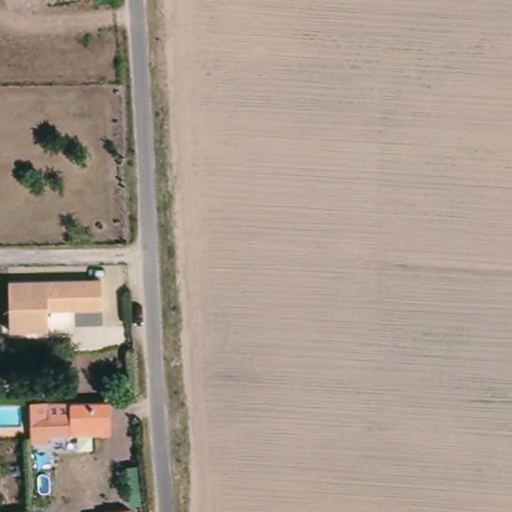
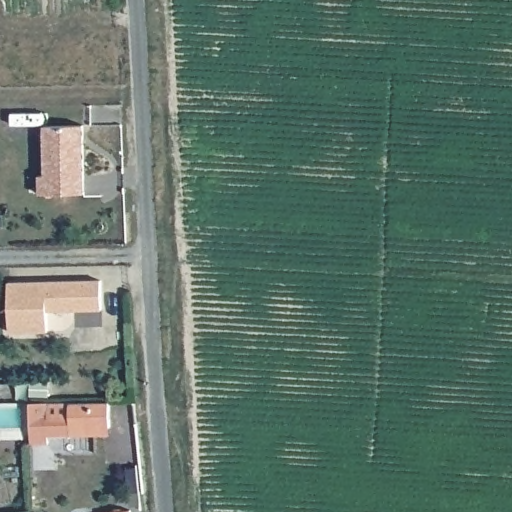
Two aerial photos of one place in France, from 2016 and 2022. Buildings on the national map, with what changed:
new [(85,125),(85,191),(39,193),(38,176),(44,174),(43,126),(85,125)]
unchanged [(104,316),(75,316),(75,311),(49,311),(49,336),(11,337),(10,287),(104,286),(104,316)]
unchanged [(74,436),(53,436),(53,443),(35,443),(34,402),(52,402),(74,402),(114,402),(114,427),(114,436),(74,436)]
unchanged [(103,509),(115,508),(115,512),(103,512),(103,509)]

